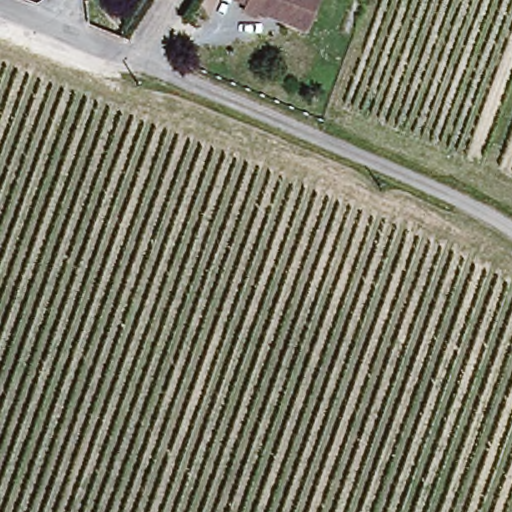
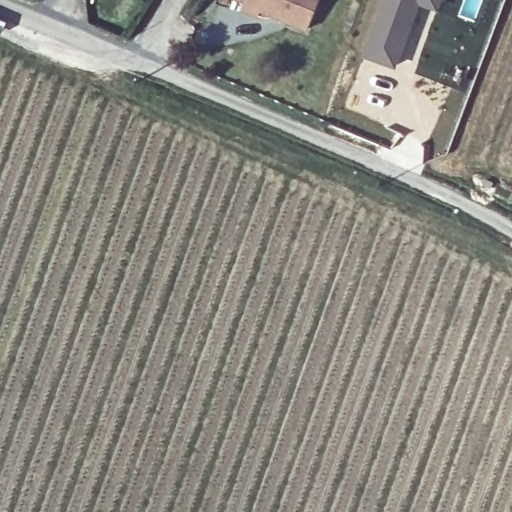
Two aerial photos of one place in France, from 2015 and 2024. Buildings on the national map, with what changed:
unchanged [(311,27),(264,6),(261,12),(245,5),(248,0),(323,0),(311,27)]
new [(382,0),(442,0),(437,11),(420,5),(397,67),(362,56),(382,0)]

